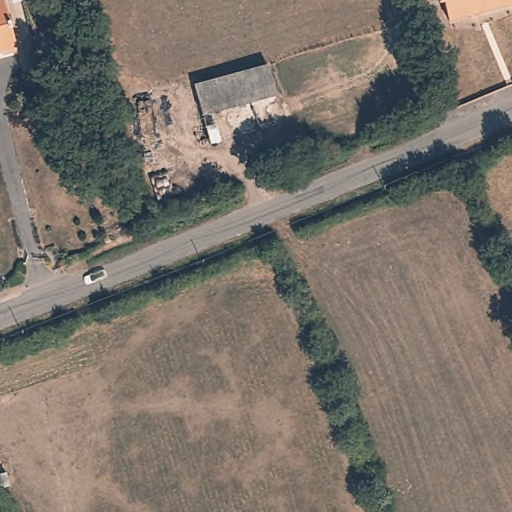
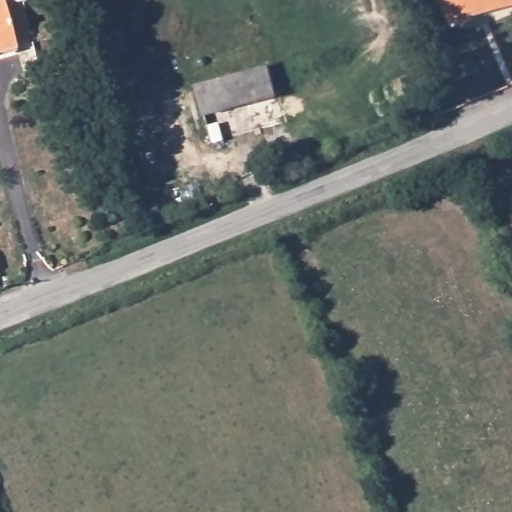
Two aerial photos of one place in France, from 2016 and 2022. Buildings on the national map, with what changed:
unchanged [(15,50),(0,54),(0,1),(2,0),(15,50)]
unchanged [(448,28),(443,7),(438,8),(437,0),(512,0),(512,12),(448,28)]
unchanged [(270,64),(277,94),(268,95),(202,110),(195,81),(261,66),(270,64)]

